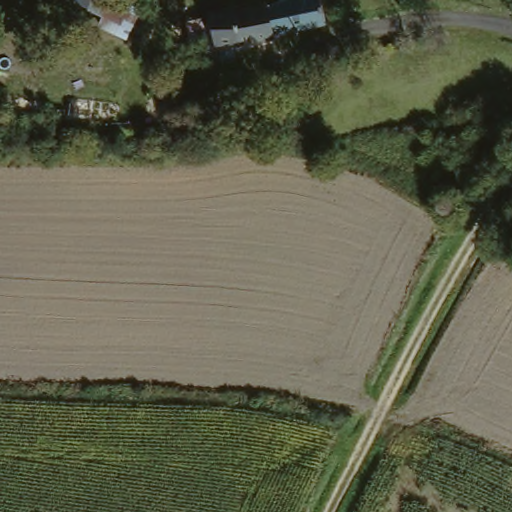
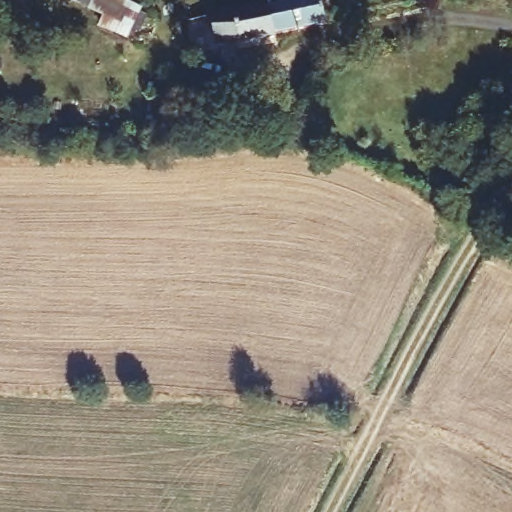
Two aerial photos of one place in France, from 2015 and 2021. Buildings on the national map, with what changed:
unchanged [(94,14),(102,0),(110,0),(121,7),(144,21),(131,44),(108,30),(111,24),(94,14)]
unchanged [(293,34),(276,37),(271,10),(288,6),(319,0),(325,0),(328,21),(292,26),(293,34)]
unchanged [(271,10),(276,37),(278,44),(218,51),(213,20),(267,10),(271,10)]

